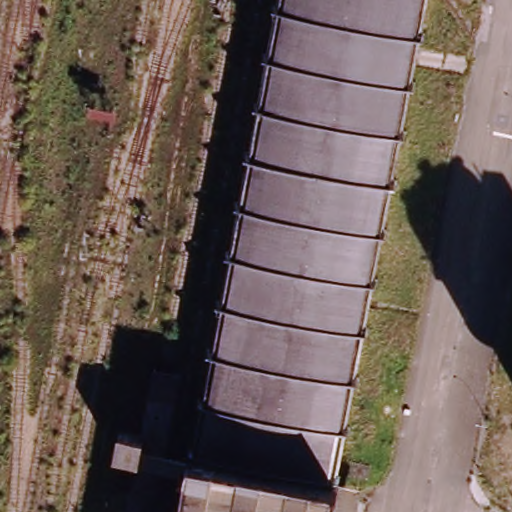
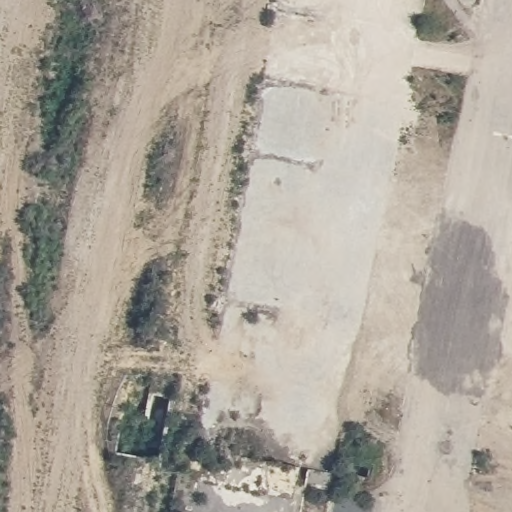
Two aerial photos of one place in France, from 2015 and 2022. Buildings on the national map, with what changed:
demolished [(190,440),(272,0),(419,0),(332,464),(190,440)]
demolished [(105,447),(110,421),(130,426),(125,451),(105,447)]
demolished [(326,512),(165,512),(178,443),(334,472),(326,512)]

